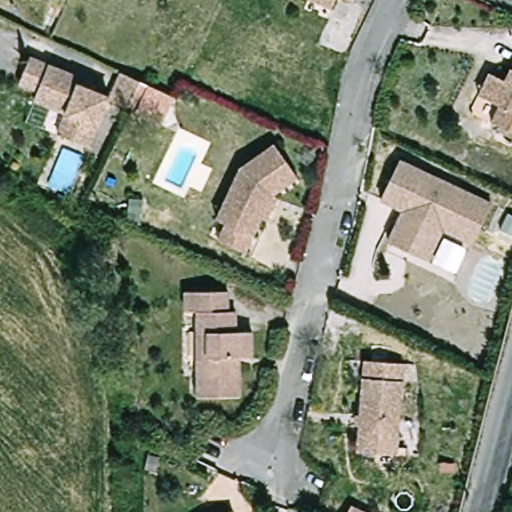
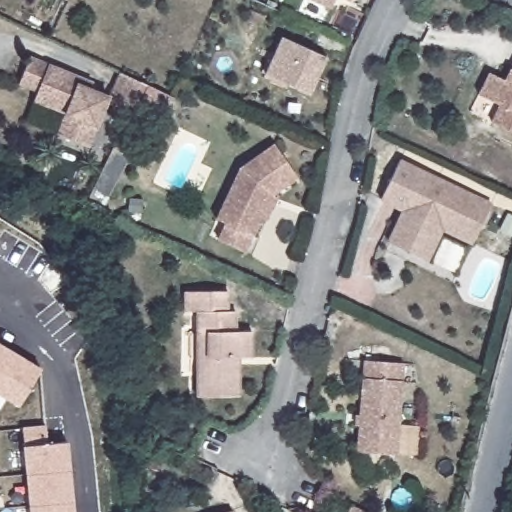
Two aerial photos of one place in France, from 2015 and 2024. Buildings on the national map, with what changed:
unchanged [(330,11),(306,0),(335,0),(330,11)]
unchanged [(352,4),(344,0),(353,0),(352,4)]
new [(282,37),(328,57),(311,97),(265,74),(282,37)]
unchanged [(40,91),(22,83),(33,57),(84,78),(96,83),(93,90),(111,97),(91,147),(60,134),(69,114),(36,100),(40,91)]
unchanged [(512,133),(490,122),(492,117),(498,105),(484,97),(477,94),(487,72),(494,76),(504,80),(512,63),(512,133)]
unchanged [(131,109),(112,100),(124,73),(144,82),(131,109)]
unchanged [(218,238),(225,222),(216,217),(240,166),(275,143),(297,176),(272,193),(278,196),(267,219),(261,216),(253,234),(245,251),(218,238)]
unchanged [(403,160),(441,179),(435,190),(457,200),(462,189),(495,204),(477,243),(445,228),(435,251),(430,260),(392,242),(407,210),(384,199),(403,160)]
unchanged [(203,311),(201,311),(201,292),(236,292),(236,311),(241,311),(241,331),(257,331),(257,358),(245,358),(245,397),(203,396),(203,356),(203,332),(203,311)]
new [(23,383),(32,368),(0,347),(0,342),(41,368),(30,387),(23,383)]
new [(32,368),(23,383),(30,387),(19,405),(0,393),(0,347),(32,368)]
unchanged [(402,453),(362,450),(370,359),(409,362),(402,453)]
new [(25,446),(23,427),(46,425),(48,444),(66,442),(67,441),(67,450),(74,512),(31,512),(26,454),(25,446)]
unchanged [(366,512),(348,512),(351,505),(366,512)]
unchanged [(238,512),(225,512),(237,509),(238,512)]

